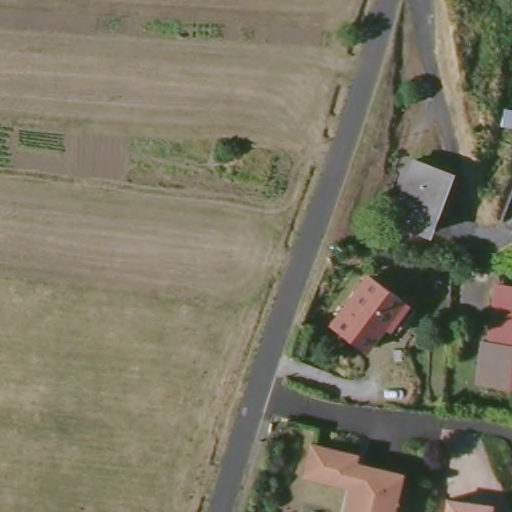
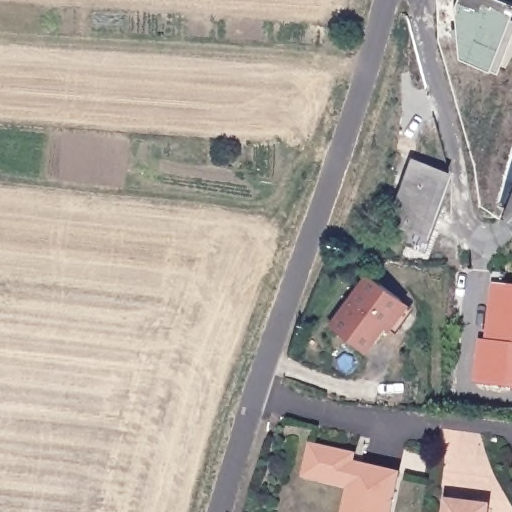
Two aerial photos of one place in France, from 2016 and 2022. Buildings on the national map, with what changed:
new [(512,11),(492,66),(460,51),(451,4),(454,0),(512,0),(512,11)]
unchanged [(387,221),(411,160),(447,172),(425,235),(387,221)]
unchanged [(330,318),(360,277),(399,304),(370,345),(330,318)]
unchanged [(485,342),(492,343),(499,289),(512,291),(512,386),(478,380),(485,342)]
unchanged [(305,470),(313,440),(349,450),(347,458),(362,463),(400,474),(389,512),(341,512),(350,484),(305,470)]
unchanged [(485,503),(484,512),(441,512),(442,497),(485,503)]

